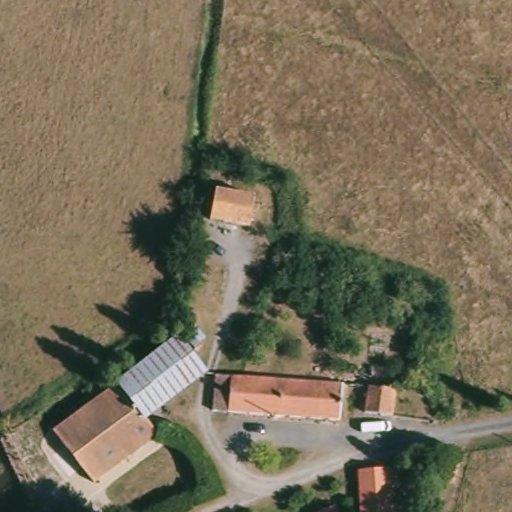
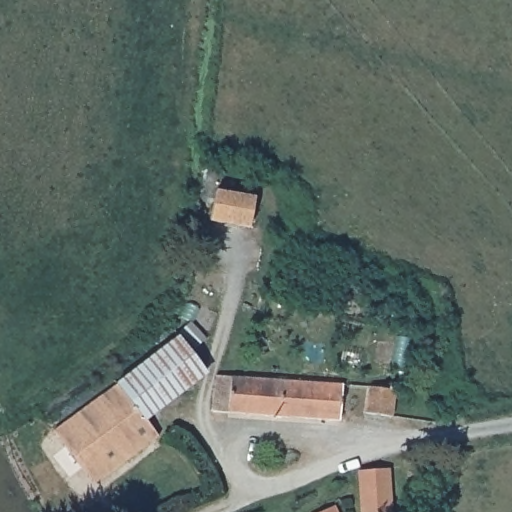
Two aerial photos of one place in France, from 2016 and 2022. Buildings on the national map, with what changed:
unchanged [(249,199),(242,230),(205,221),(212,189),(249,199)]
unchanged [(211,374),(151,417),(123,381),(184,335),(211,374)]
unchanged [(239,378),(266,380),(337,383),(337,417),(213,412),(213,377),(239,378)]
unchanged [(164,433),(98,485),(56,431),(123,381),(151,417),(164,433)]
unchanged [(397,385),(396,413),(370,412),(371,384),(397,385)]
unchanged [(351,481),(351,475),(363,473),(382,472),(382,477),(385,512),(354,512),(352,494),(351,481)]

